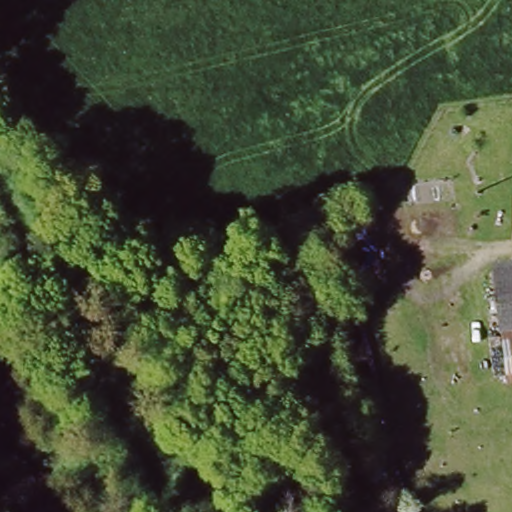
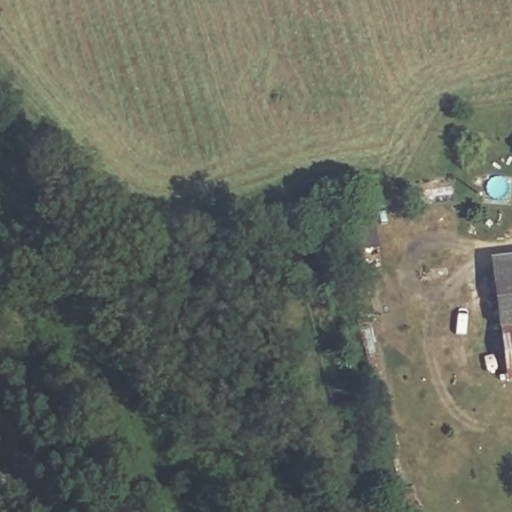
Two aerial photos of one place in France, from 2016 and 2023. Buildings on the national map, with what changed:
unchanged [(507,174),(505,147),(512,147),(512,174),(507,174)]
unchanged [(511,382),(498,276),(512,274),(512,382),(511,382)]

